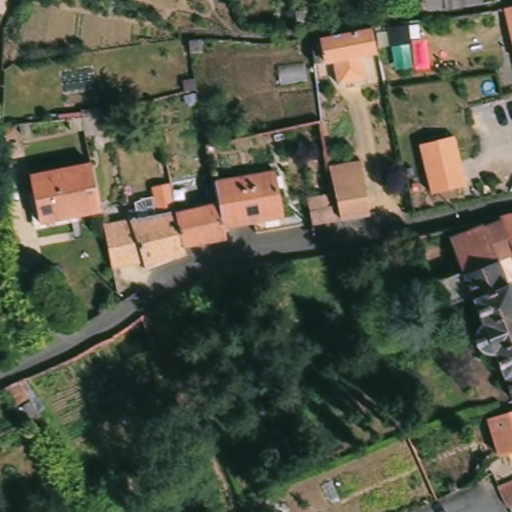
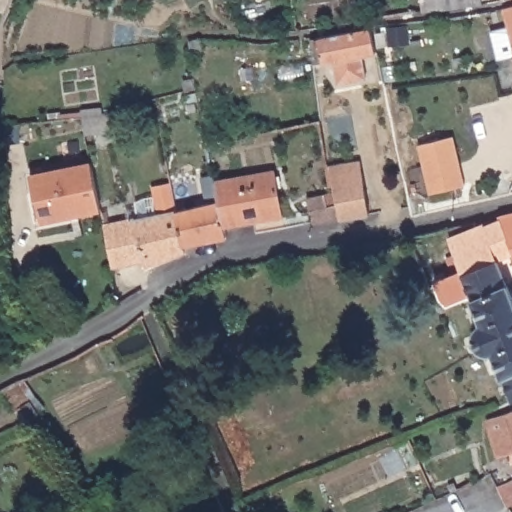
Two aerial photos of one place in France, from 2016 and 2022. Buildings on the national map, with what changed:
unchanged [(483,7),(447,12),(423,16),(421,0),(482,0),(483,7)]
unchanged [(512,10),(512,41),(505,12),(512,10)]
unchanged [(364,52),(369,75),(341,80),(337,56),(320,61),(316,35),(377,24),(380,50),(364,52)]
unchanged [(409,30),(409,45),(389,46),(388,30),(409,30)]
unchanged [(446,141),(458,189),(424,198),(411,150),(446,141)]
unchanged [(36,224),(24,178),(87,164),(95,202),(96,210),(36,224)]
unchanged [(302,215),(302,205),(327,200),(324,190),(322,175),(354,168),(366,219),(333,226),(306,230),(302,215)]
unchanged [(269,174),(280,230),(249,235),(246,222),(218,228),(214,205),(210,185),(269,174)]
unchanged [(171,215),(177,249),(179,255),(141,269),(139,270),(137,264),(107,270),(100,229),(124,224),(124,221),(152,215),(147,191),(147,189),(165,184),(165,187),(171,215)]
unchanged [(214,205),(218,228),(220,240),(216,241),(177,249),(171,215),(214,205)]
unchanged [(497,225),(495,221),(512,217),(512,262),(510,257),(497,225)]
unchanged [(446,242),(477,229),(479,232),(497,225),(510,257),(493,264),(487,248),(453,262),(446,242)]
unchanged [(512,402),(508,404),(488,356),(484,358),(476,356),(472,352),(469,349),(468,337),(472,331),(477,328),(467,301),(448,309),(438,303),(431,287),(458,275),(453,262),(487,248),(493,264),(512,310),(512,402)]
unchanged [(483,420),(512,412),(512,453),(493,458),(483,420)]
unchanged [(486,477),(491,474),(511,463),(512,463),(512,504),(502,509),(501,506),(492,490),(486,477)]

